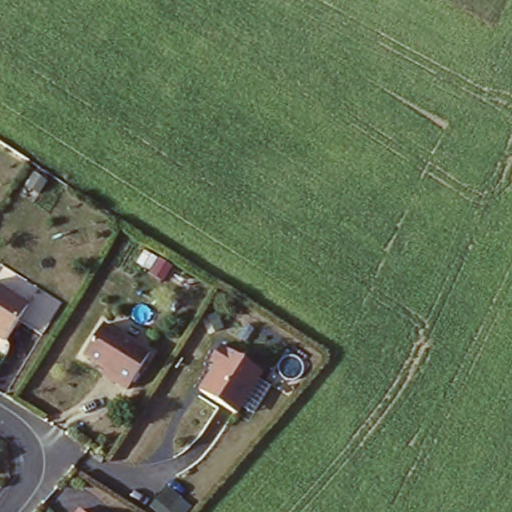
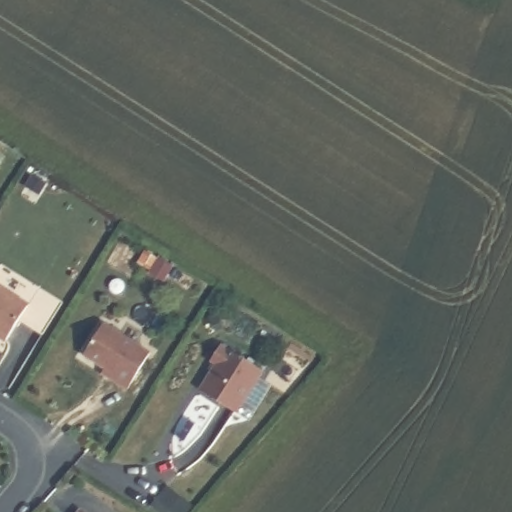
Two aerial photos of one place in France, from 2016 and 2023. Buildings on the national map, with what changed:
unchanged [(49,176),(41,188),(29,180),(36,169),(49,176)]
unchanged [(26,305),(18,317),(5,338),(0,335),(0,287),(26,305)]
unchanged [(107,367),(87,354),(107,323),(153,352),(130,389),(116,380),(104,372),(107,367)]
unchanged [(220,345),(261,372),(235,413),(199,390),(215,365),(210,361),(220,345)]
unchanged [(82,509),(85,512),(79,512),(82,509)]

